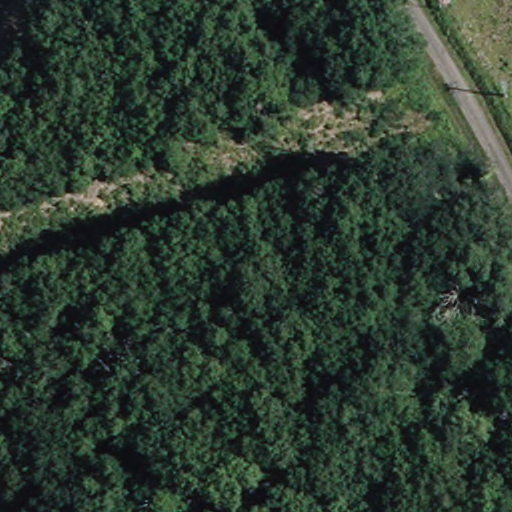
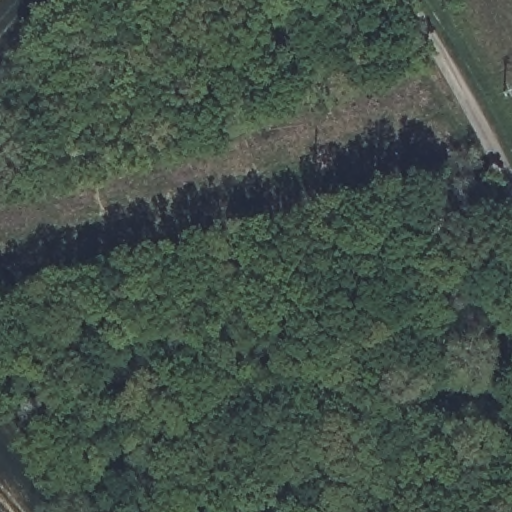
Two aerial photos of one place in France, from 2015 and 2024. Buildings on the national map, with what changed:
unchanged [(451,366),(463,352),(510,296),(512,298),(512,343),(487,372),(474,386),(451,366)]

